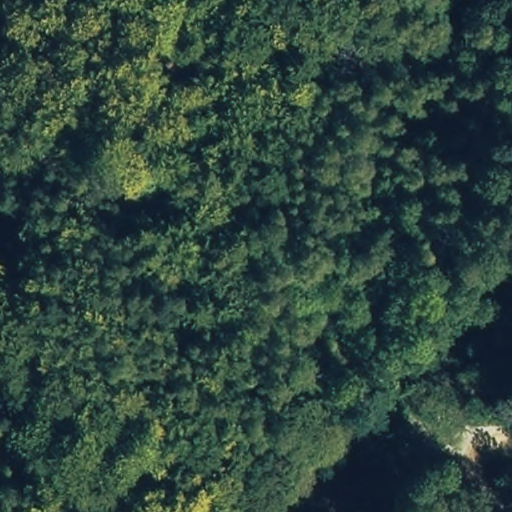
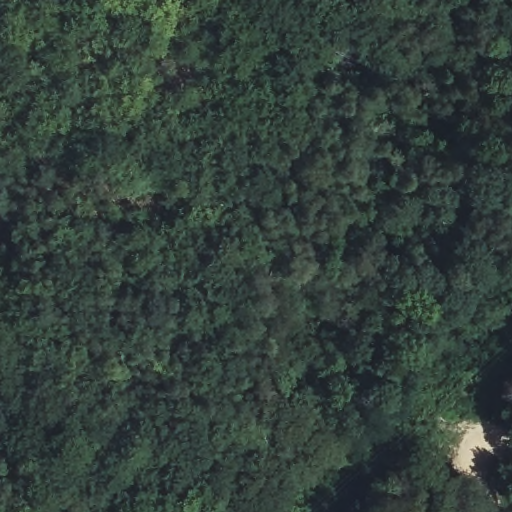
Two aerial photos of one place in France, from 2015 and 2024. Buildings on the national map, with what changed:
[]

